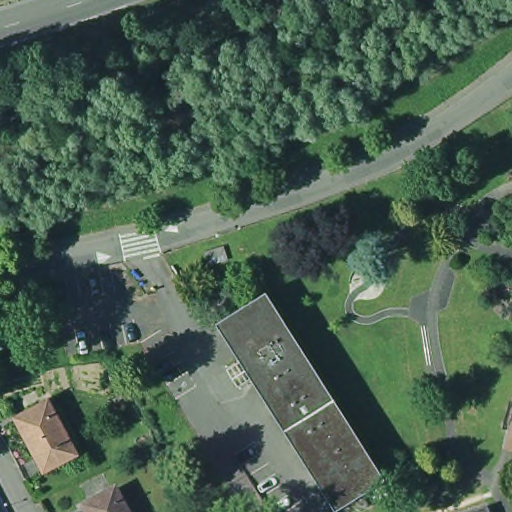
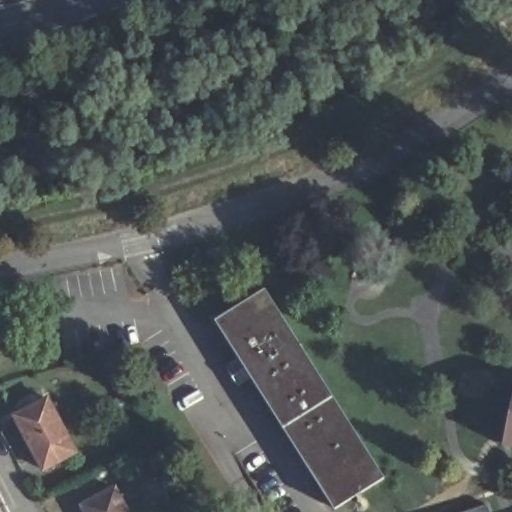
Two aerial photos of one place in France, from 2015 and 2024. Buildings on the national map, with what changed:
unchanged [(266,288),(385,475),(335,506),(252,375),(237,383),(227,367),(241,358),(217,320),(266,288)]
unchanged [(77,458),(43,474),(15,420),(47,403),(77,458)]
unchanged [(512,444),(512,453),(510,453),(512,444)]
unchanged [(86,512),(82,505),(115,488),(127,512),(86,512)]
unchanged [(489,512),(458,512),(485,502),(489,512)]

